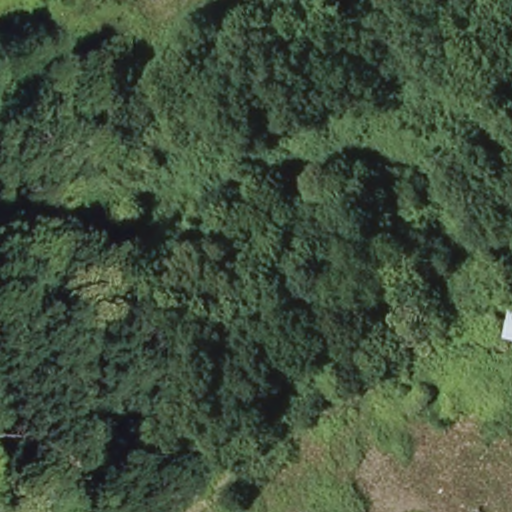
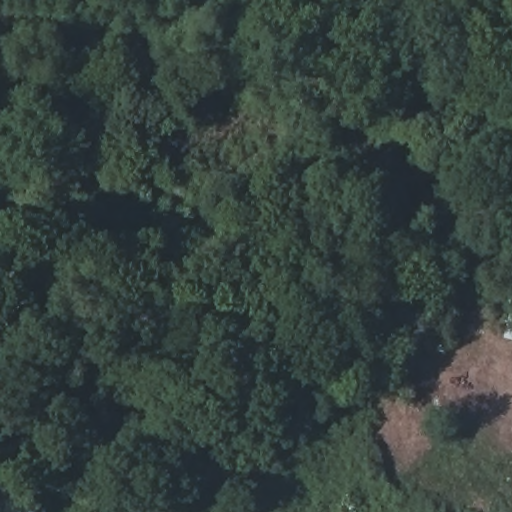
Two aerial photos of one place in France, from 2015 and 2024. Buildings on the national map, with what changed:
unchanged [(510,310),(512,311),(512,340),(500,338),(510,310)]
unchanged [(112,512),(111,511),(142,506),(143,512),(112,512)]

